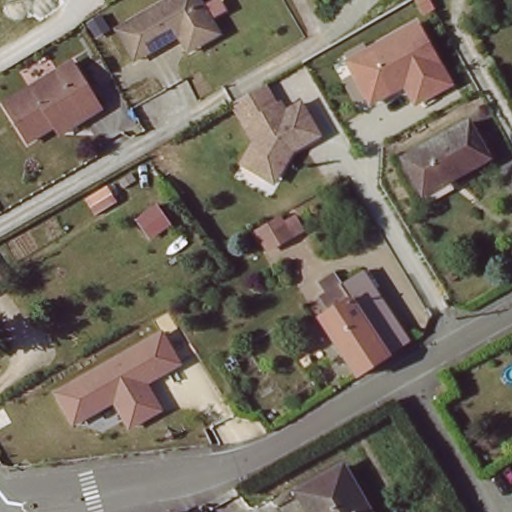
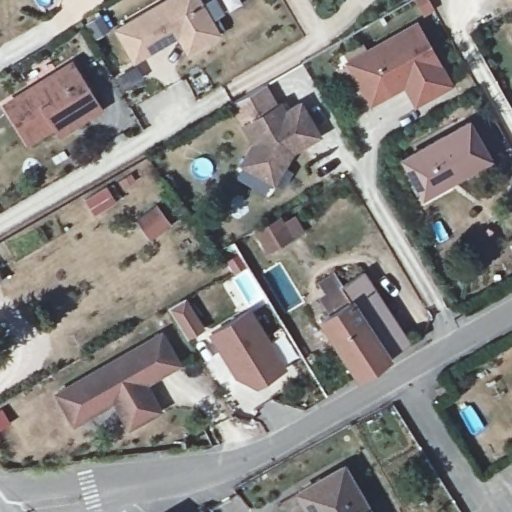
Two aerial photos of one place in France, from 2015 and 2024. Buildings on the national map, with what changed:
unchanged [(162,0),(201,0),(211,17),(219,31),(194,44),(185,49),(178,37),(175,32),(142,52),(130,60),(113,28),(124,22),(162,0)]
unchanged [(415,107),(403,89),(369,106),(364,100),(355,104),(341,80),(350,75),(343,61),(347,59),(344,53),(362,42),(366,49),(418,22),(453,86),(415,107)]
unchanged [(50,124),(22,141),(0,104),(68,62),(97,107),(78,118),(55,132),(50,124)]
unchanged [(268,178),(261,174),(240,162),(248,147),(252,140),(230,102),(248,91),(262,83),(274,104),(278,102),(283,110),(298,101),(317,134),(299,144),(290,149),(280,167),(272,181),(268,178)]
unchanged [(466,120),(486,157),(418,192),(398,155),(466,120)]
unchanged [(265,254),(251,232),(282,216),(284,222),(296,216),(305,232),(265,254)]
unchanged [(362,272),(408,347),(389,360),(342,285),(362,272)]
unchanged [(2,282),(0,284),(0,279),(2,282)]
unchanged [(389,360),(357,381),(319,322),(334,311),(324,297),(329,293),(323,285),(332,280),(337,287),(342,285),(389,360)]
new [(247,308),(285,368),(254,387),(233,376),(207,335),(247,308)]
unchanged [(179,363),(147,385),(161,409),(127,428),(114,403),(72,425),(54,393),(161,332),(179,363)]
demolished [(425,392),(415,398),(409,388),(420,382),(425,392)]
unchanged [(307,498),(302,490),(323,477),(343,465),(370,512),(314,512),(307,498)]

